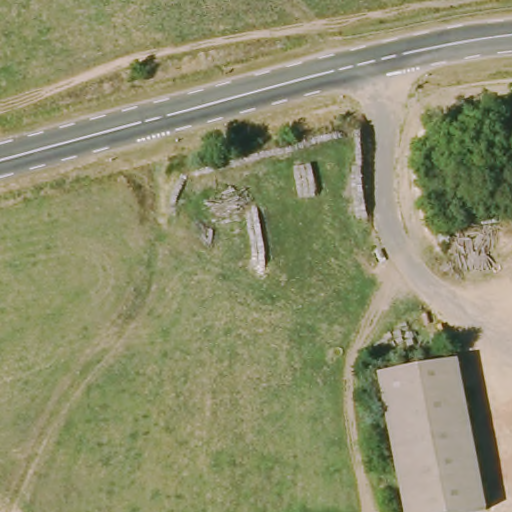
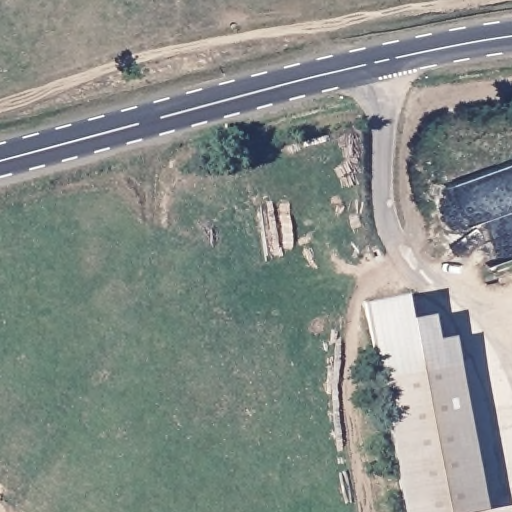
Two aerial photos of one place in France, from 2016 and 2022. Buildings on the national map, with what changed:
new [(365,305),(404,296),(408,321),(432,316),(437,342),(454,339),(459,363),(379,380),(365,305)]
unchanged [(379,380),(459,363),(487,512),(405,512),(379,380)]

